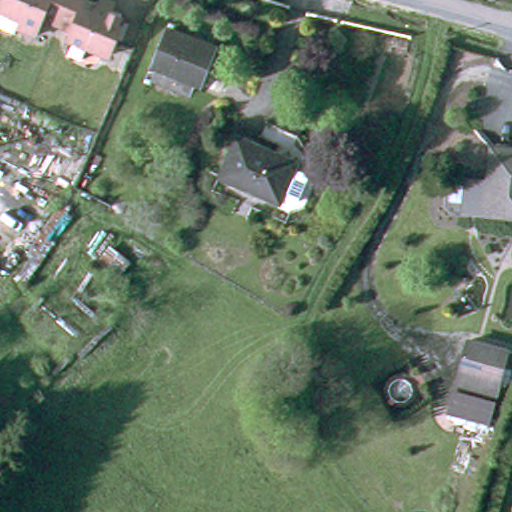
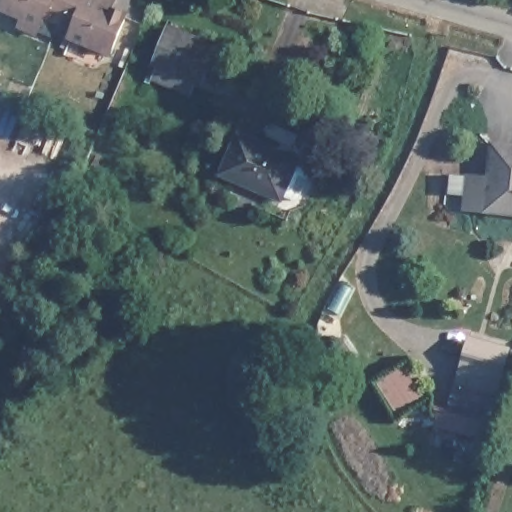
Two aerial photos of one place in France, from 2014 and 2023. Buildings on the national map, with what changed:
unchanged [(103,3),(104,0),(114,0),(116,1),(112,7),(127,14),(111,53),(70,35),(73,26),(45,14),(41,23),(37,32),(17,24),(22,14),(4,6),(0,4),(0,2),(1,0),(96,0),(103,3)]
unchanged [(167,31),(214,48),(201,87),(154,69),(167,31)]
unchanged [(305,175),(296,194),(290,197),(280,192),(277,199),(216,173),(234,131),(295,157),(292,164),(302,168),(305,175)]
unchanged [(480,208),(462,206),(456,205),(459,178),(465,179),(483,181),(487,148),(512,150),(512,211),(480,208)]
unchanged [(499,393),(459,382),(466,353),(512,365),(512,374),(511,380),(507,395),(499,393)]

